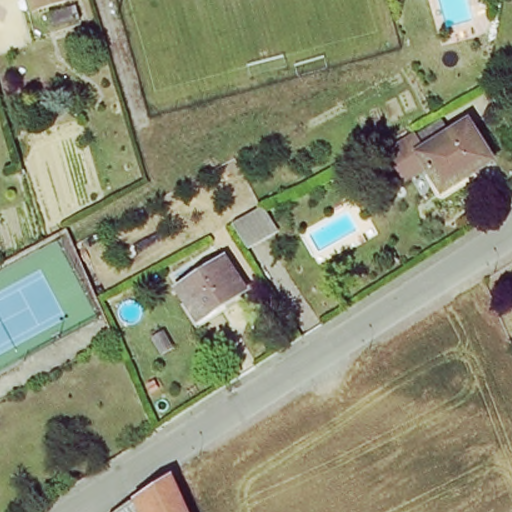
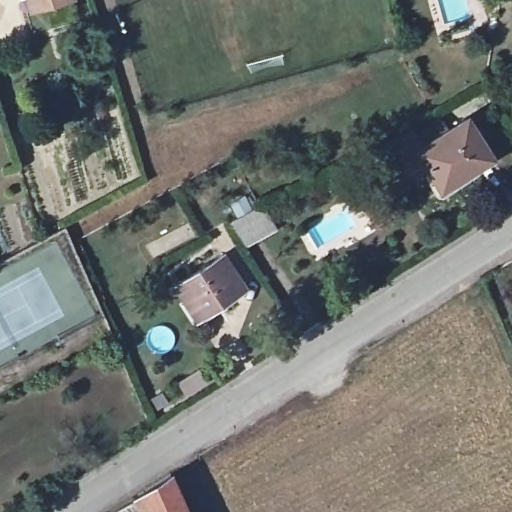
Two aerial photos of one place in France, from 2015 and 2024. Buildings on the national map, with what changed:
unchanged [(22,0),(64,0),(36,8),(25,12),(22,0)]
unchanged [(499,154),(449,185),(433,160),(410,174),(392,145),(420,128),(422,131),(446,117),(453,128),(475,114),(499,154)]
unchanged [(272,229),(245,245),(231,222),(261,206),(272,229)]
unchanged [(196,317),(177,284),(226,257),(246,290),(196,317)]
unchanged [(170,471),(188,512),(137,512),(131,499),(170,471)]

